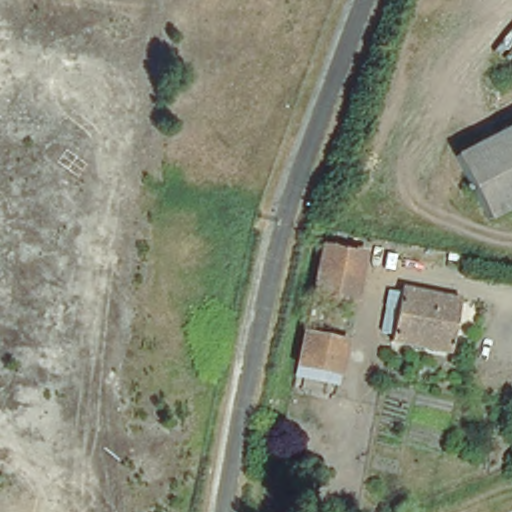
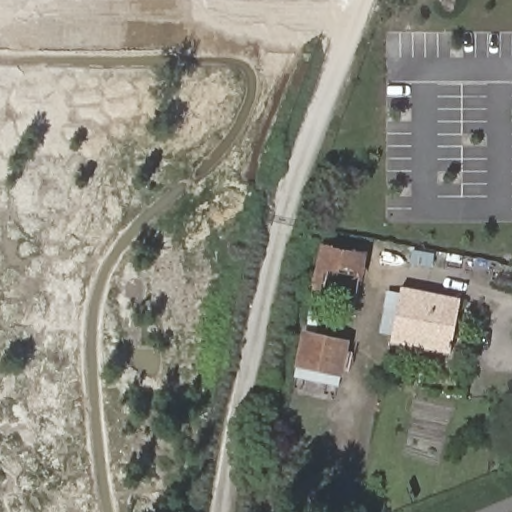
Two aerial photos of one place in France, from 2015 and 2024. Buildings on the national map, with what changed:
unchanged [(412,11),(417,0),(428,0),(422,15),(412,11)]
demolished [(448,158),(512,125),(512,205),(481,221),(448,158)]
unchanged [(363,249),(352,303),(309,293),(320,239),(363,249)]
unchanged [(456,298),(446,349),(388,338),(400,285),(456,298)]
unchanged [(342,339),(332,385),(293,376),(302,329),(342,339)]

